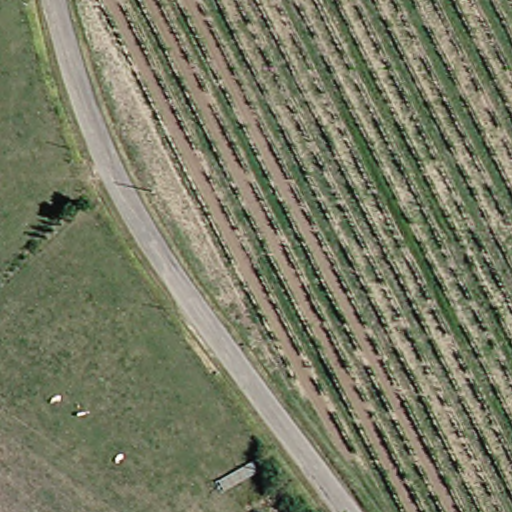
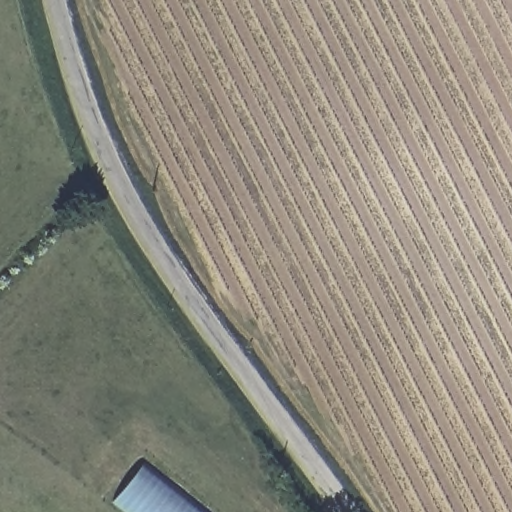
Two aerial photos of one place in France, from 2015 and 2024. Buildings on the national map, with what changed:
new [(112,502),(145,463),(208,512),(125,512),(112,502)]

